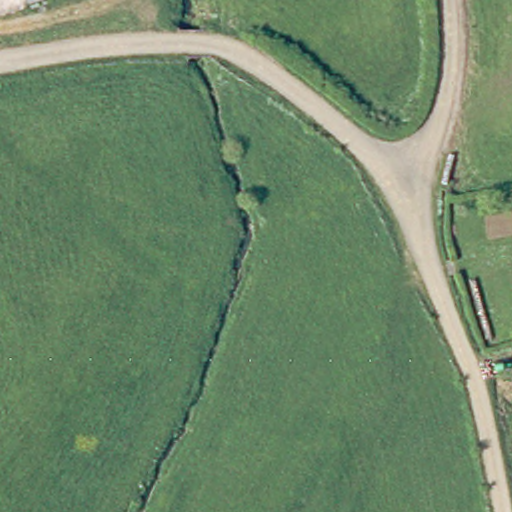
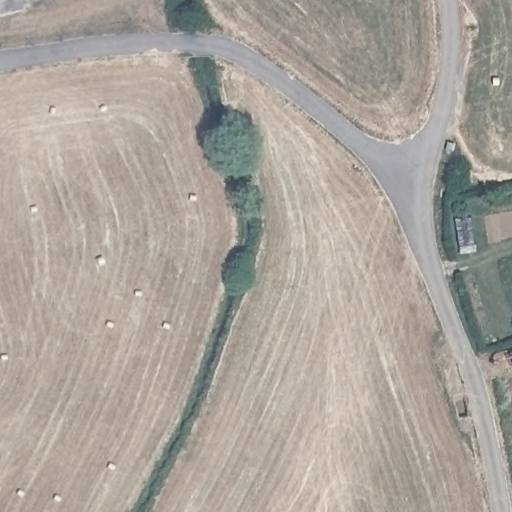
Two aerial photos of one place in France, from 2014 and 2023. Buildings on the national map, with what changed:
unchanged [(38,0),(39,0),(38,1),(38,0)]

